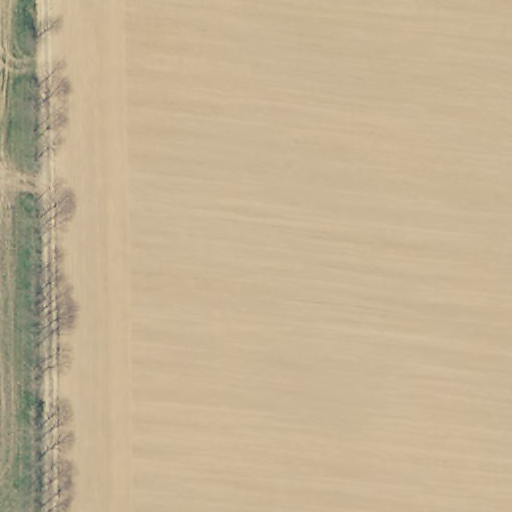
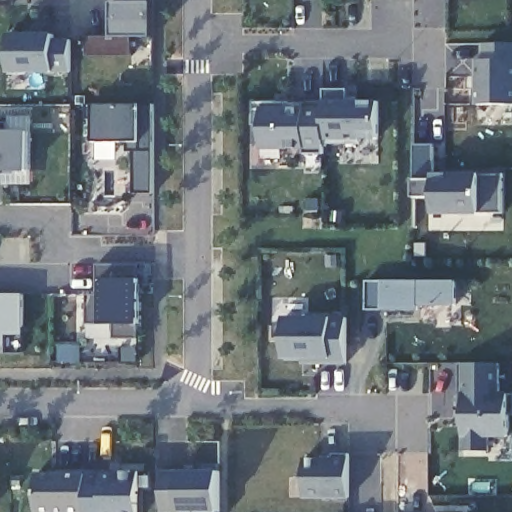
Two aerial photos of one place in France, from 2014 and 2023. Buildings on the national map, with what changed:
new [(152,2),(152,37),(112,37),(112,3),(152,2)]
new [(71,35),(71,72),(10,72),(10,34),(71,35)]
new [(476,60),(481,59),(482,43),(512,44),(512,104),(476,104),(476,60)]
new [(323,102),(324,90),(348,90),(348,98),(358,97),(358,101),(379,101),(379,141),(360,140),(360,145),(330,144),(331,139),(324,139),(324,154),(304,155),(305,148),(261,149),(261,124),(253,125),(253,102),(323,102)]
new [(140,104),(139,142),(152,141),(153,193),(135,193),(136,151),(127,151),(126,142),(94,143),(93,104),(140,104)]
new [(0,171),(0,122),(8,122),(9,130),(29,130),(29,171),(0,171)]
new [(414,145),(434,145),(434,173),(451,173),(451,174),(503,174),(502,213),(433,214),(433,197),(415,197),(414,145)]
new [(139,264),(140,279),(140,324),(139,339),(114,338),(116,324),(102,324),(86,324),(88,294),(101,295),(101,280),(96,280),(96,264),(139,264)]
new [(457,281),(457,305),(415,306),(415,311),(368,311),(367,281),(457,281)]
new [(22,335),(5,335),(5,346),(0,346),(0,294),(22,294),(22,335)]
new [(332,317),(332,322),(348,321),(347,364),(303,364),(304,360),(284,359),(283,317),(332,317)]
new [(500,364),(500,392),(509,392),(509,438),(489,438),(489,450),(463,450),(463,420),(459,420),(459,363),(500,364)]
new [(304,458),(350,458),(350,498),(303,498),(304,458)]
new [(219,470),(219,512),(161,512),(161,471),(177,470),(202,470),(202,464),(219,464),(219,470)]
new [(139,472),(139,512),(36,512),(36,472),(139,472)]

